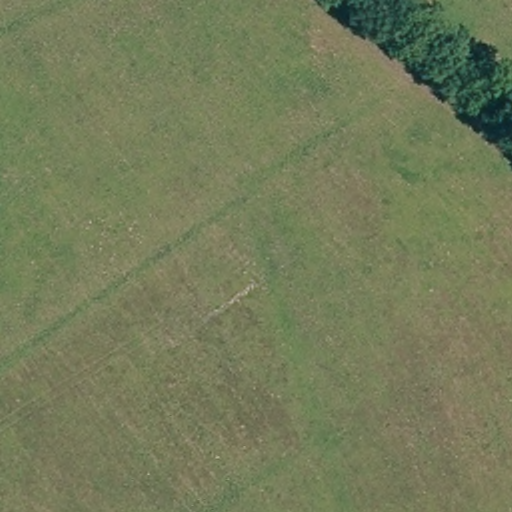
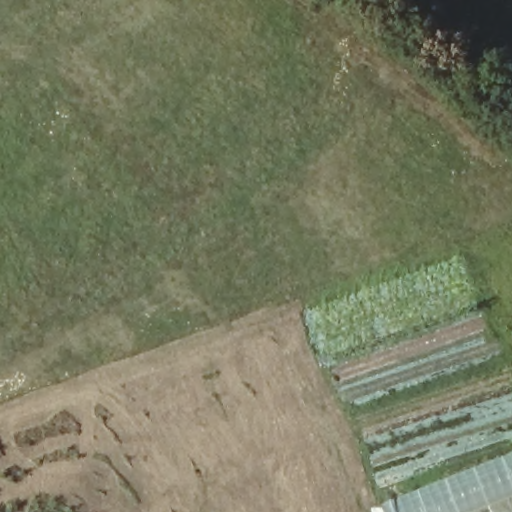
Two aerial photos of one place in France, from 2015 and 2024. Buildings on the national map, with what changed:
new [(512,512),(385,512),(382,505),(512,452),(512,512)]

